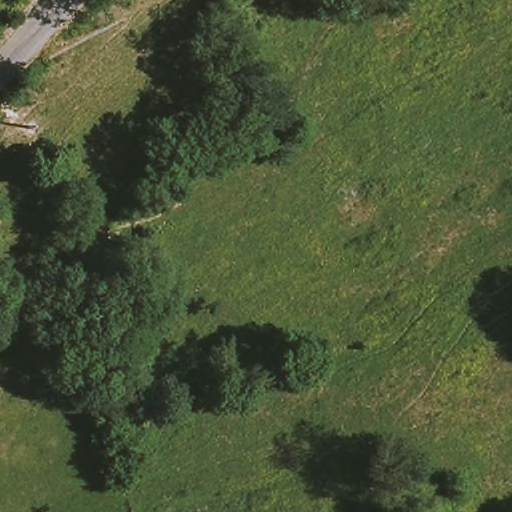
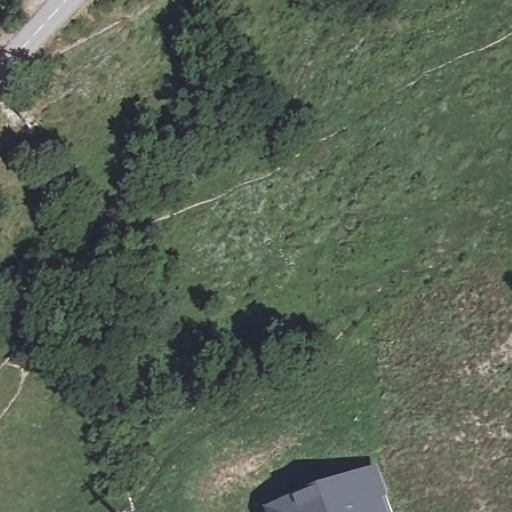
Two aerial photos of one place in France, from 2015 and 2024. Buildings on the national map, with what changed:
new [(272,508),(377,468),(394,512),(274,512),(272,508)]

